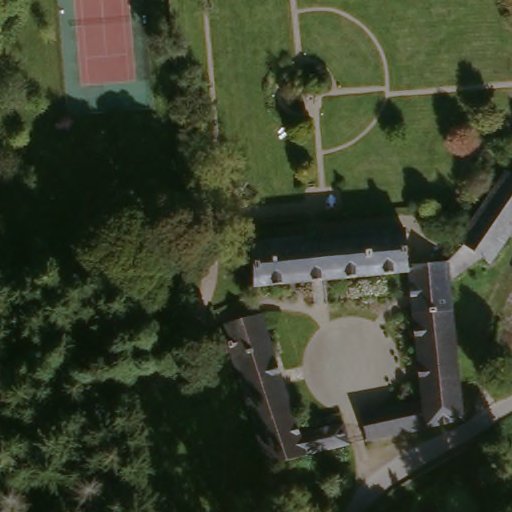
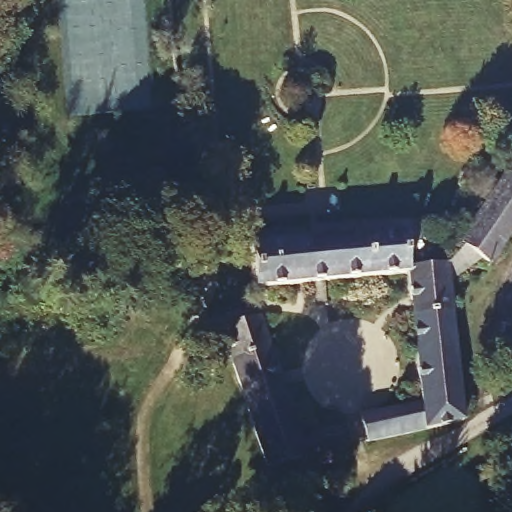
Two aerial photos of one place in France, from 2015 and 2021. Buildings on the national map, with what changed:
unchanged [(481,259),(454,282),(453,262),(466,250),(460,247),(512,162),(512,227),(489,265),(481,259)]
unchanged [(409,279),(262,291),(257,252),(256,247),(406,233),(407,263),(453,262),(454,282),(457,308),(412,312),(409,279)]
unchanged [(421,407),(412,312),(457,308),(465,412),(465,424),(424,435),(421,407)]
unchanged [(216,346),(217,342),(220,335),(224,331),(221,321),(260,312),(271,350),(232,359),(219,360),(216,346)]
unchanged [(289,412),(258,420),(248,422),(232,359),(271,350),(289,412)]
unchanged [(362,419),(421,407),(424,435),(367,448),(362,419)]
unchanged [(295,433),(339,425),(342,447),(327,452),(265,466),(260,467),(248,422),(258,420),(289,412),(295,433)]

